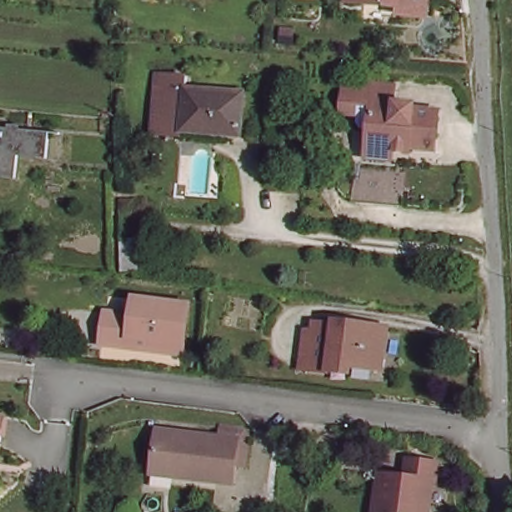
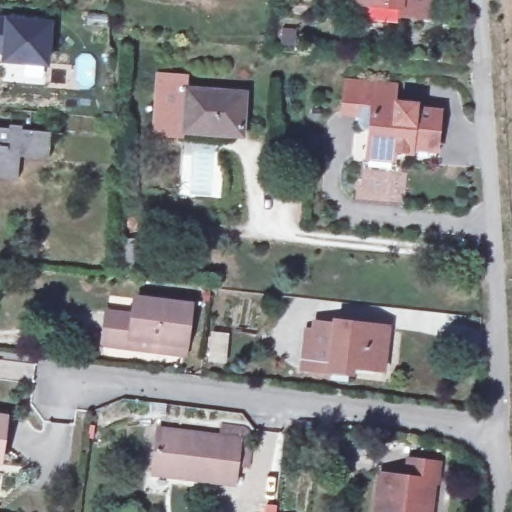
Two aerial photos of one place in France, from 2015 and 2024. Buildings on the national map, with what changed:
unchanged [(419,0),(418,23),(390,22),(389,15),(338,12),(338,0),(419,0)]
new [(51,20),(46,66),(0,64),(0,16),(3,16),(51,20)]
unchanged [(158,135),(158,123),(163,75),(194,77),(194,90),(244,95),(241,130),(189,126),(188,136),(158,135)]
unchanged [(394,110),(414,111),(415,119),(438,119),(434,155),(414,154),(412,157),(389,157),(389,154),(369,152),(371,136),(354,135),(354,126),(342,125),(345,93),(364,95),(395,96),(394,110)]
unchanged [(48,161),(14,160),(12,180),(0,179),(0,130),(49,135),(48,161)]
unchanged [(414,169),(413,200),(361,198),(363,165),(414,169)]
unchanged [(129,316),(131,301),(183,306),(180,342),(127,336),(125,348),(101,345),(105,315),(129,316)]
unchanged [(316,335),(317,328),(333,329),(334,323),(391,329),(385,375),(333,370),(332,378),(310,377),(311,367),(303,366),(305,335),(316,335)]
unchanged [(3,458),(0,457),(0,422),(8,423),(3,458)]
unchanged [(213,432),(236,435),(235,447),(230,491),(144,482),(151,436),(213,444),(213,432)]
unchanged [(406,477),(409,460),(439,466),(436,487),(430,486),(425,512),(370,512),(378,473),(406,477)]

